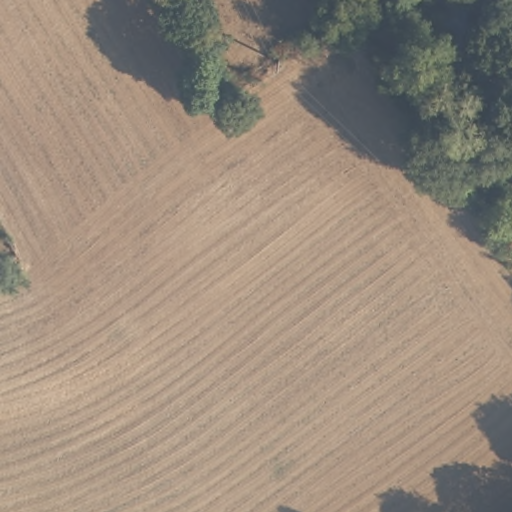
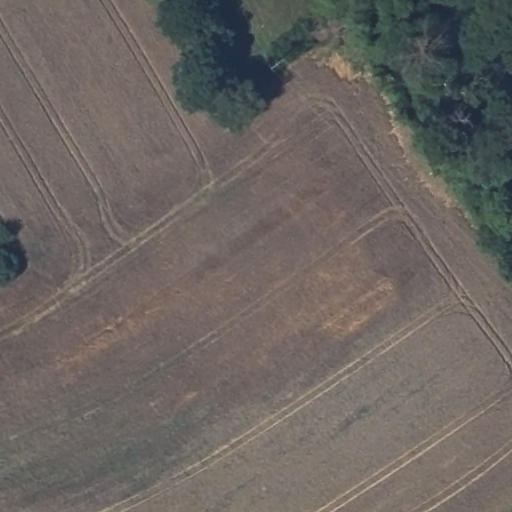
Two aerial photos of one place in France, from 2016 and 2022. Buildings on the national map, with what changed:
[]

